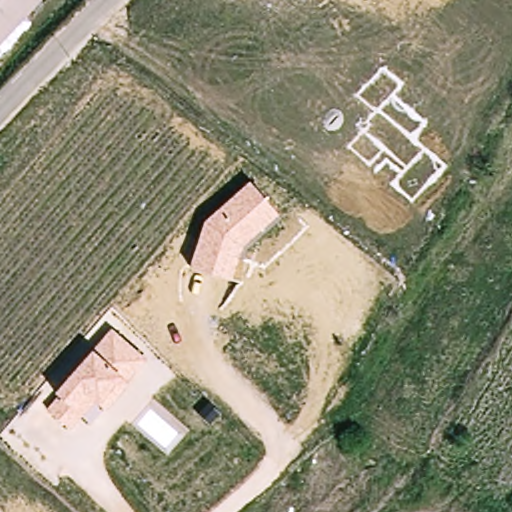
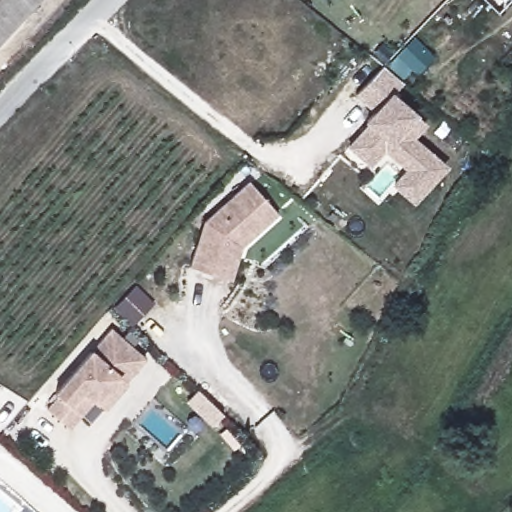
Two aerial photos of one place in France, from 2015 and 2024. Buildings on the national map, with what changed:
unchanged [(37,0),(0,40),(0,0),(37,0)]
new [(391,94),(416,115),(426,124),(415,137),(445,165),(413,202),(390,184),(405,167),(383,150),(370,165),(347,145),(368,123),(365,120),(373,111),(356,96),(381,65),(402,83),(391,94)]
unchanged [(275,213),(242,245),(232,277),(189,266),(203,221),(247,182),(275,213)]
unchanged [(144,359),(105,411),(100,406),(93,401),(70,429),(46,409),(55,390),(90,351),(110,330),(144,359)]

